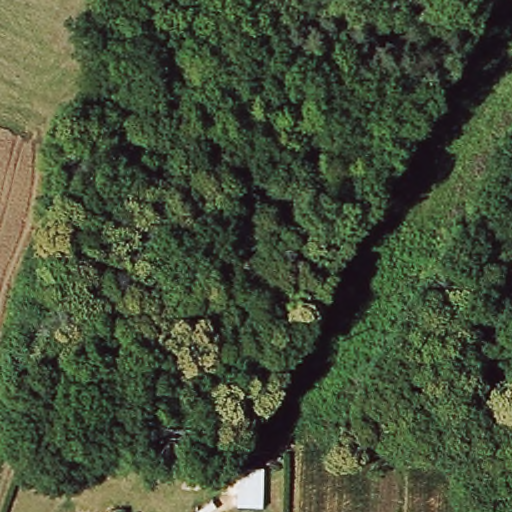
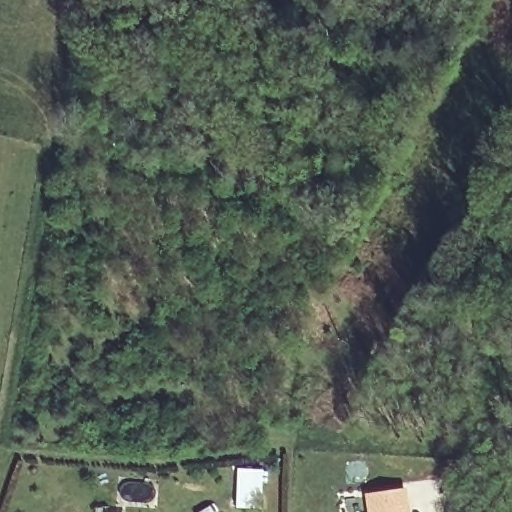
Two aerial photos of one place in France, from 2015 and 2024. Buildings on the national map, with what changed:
unchanged [(233,509),(235,474),(263,475),(261,510),(233,509)]
new [(371,492),(407,487),(411,512),(374,512),(371,492)]

